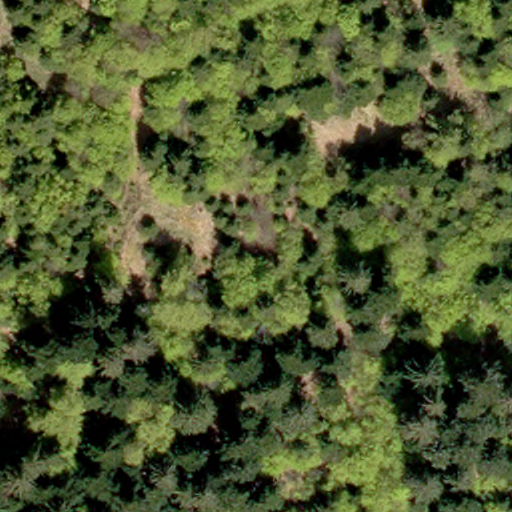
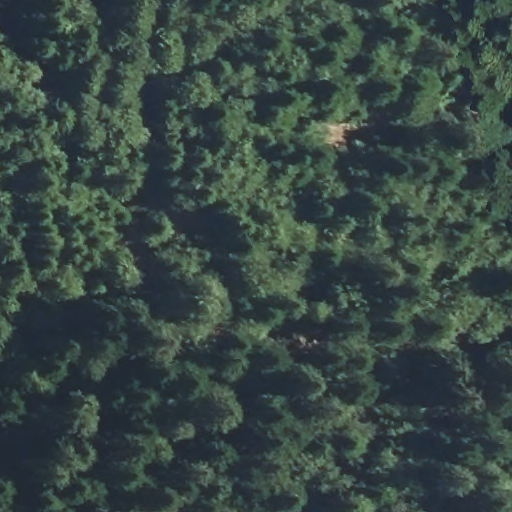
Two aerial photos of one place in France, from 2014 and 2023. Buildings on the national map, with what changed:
[]

